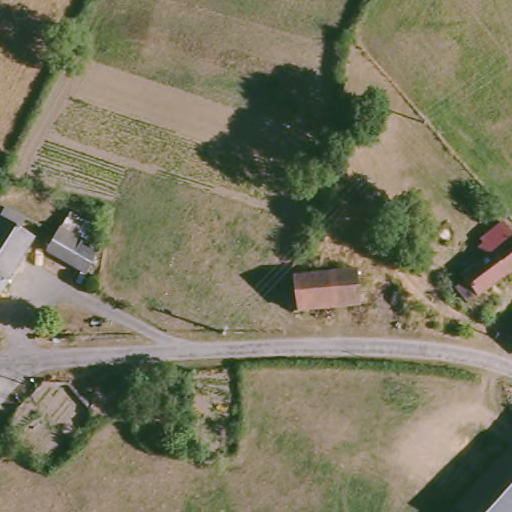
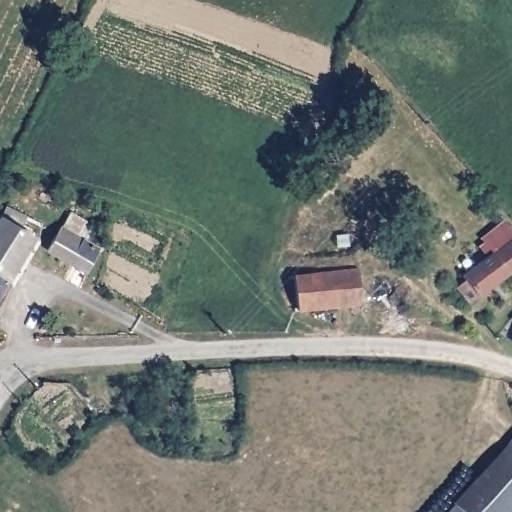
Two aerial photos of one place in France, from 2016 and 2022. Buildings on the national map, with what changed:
unchanged [(12,212),(30,224),(24,236),(36,245),(0,298),(0,230),(12,212)]
unchanged [(87,277),(50,252),(64,231),(89,244),(99,233),(111,242),(87,277)]
unchanged [(453,287),(460,282),(455,272),(512,237),(512,276),(465,305),(453,287)]
unchanged [(360,269),(362,308),(290,314),(287,276),(360,269)]
unchanged [(512,512),(467,512),(512,465),(512,512)]

